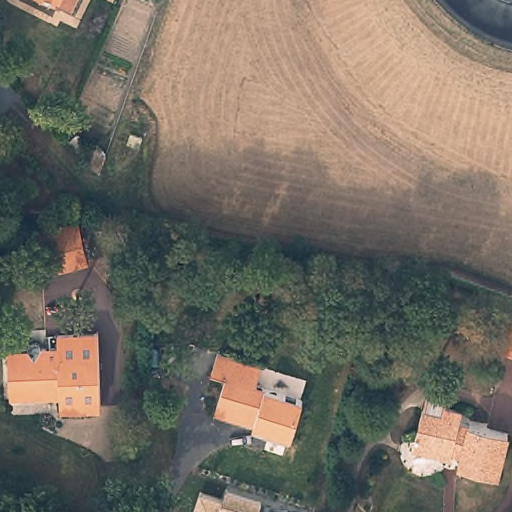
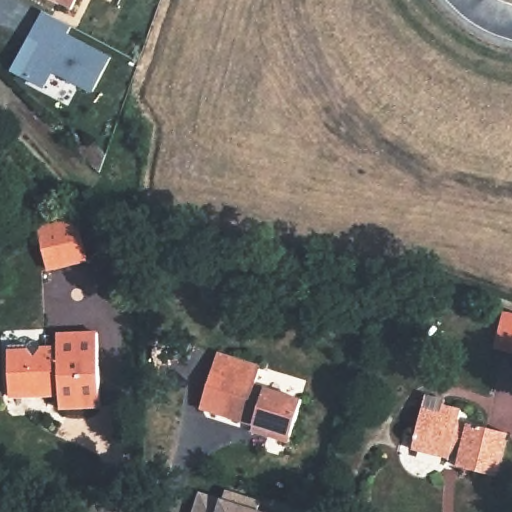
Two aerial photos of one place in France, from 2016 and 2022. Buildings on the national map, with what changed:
new [(67,32),(111,56),(91,92),(52,72),(45,89),(10,71),(43,10),(71,25),(67,32)]
unchanged [(80,172),(87,180),(81,186),(74,179),(80,172)]
unchanged [(81,223),(90,262),(53,271),(43,231),(81,223)]
unchanged [(512,303),(512,340),(499,336),(508,302),(512,303)]
unchanged [(14,384),(14,356),(14,344),(30,344),(61,344),(62,330),(102,329),(102,405),(61,406),(61,383),(52,383),(52,394),(30,394),(14,395),(14,384)]
unchanged [(270,432),(272,426),(202,404),(217,349),(264,362),(259,379),(269,382),(273,366),(310,378),(306,393),(292,439),(270,432)]
unchanged [(512,428),(512,430),(500,476),(462,467),(465,454),(452,451),(450,458),(414,448),(425,406),(429,393),(445,398),(465,403),(462,415),(512,428)]
unchanged [(201,491),(222,498),(226,499),(229,490),(263,500),(260,509),(268,512),(194,512),(201,491)]

